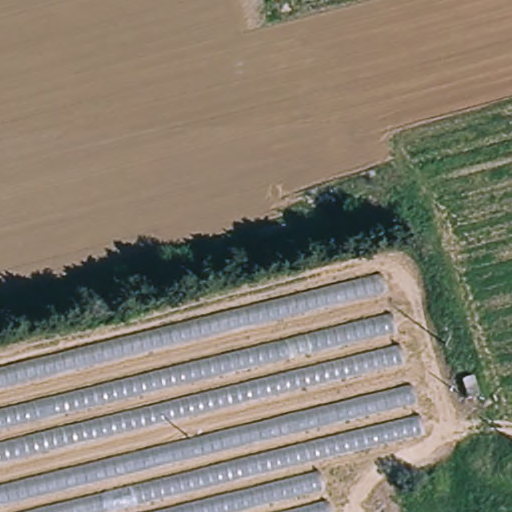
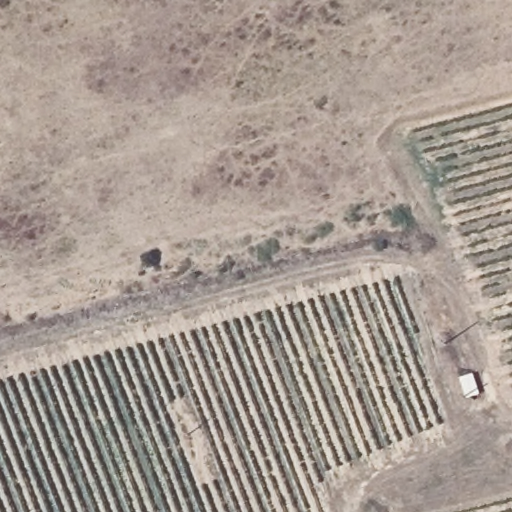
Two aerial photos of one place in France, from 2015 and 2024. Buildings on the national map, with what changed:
demolished [(425,428),(318,456),(333,512),(0,512),(0,364),(384,268),(425,428)]
unchanged [(479,388),(483,403),(472,406),(468,391),(479,388)]

